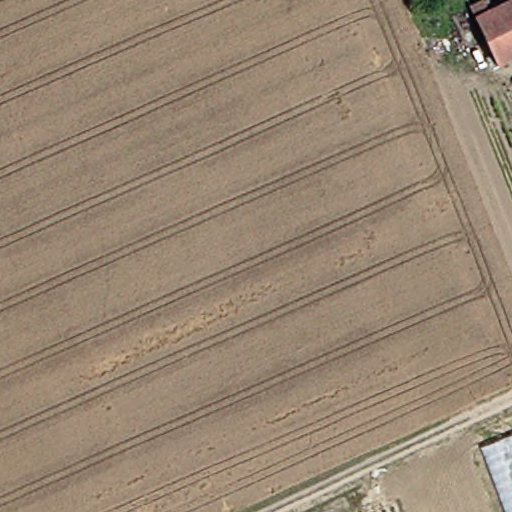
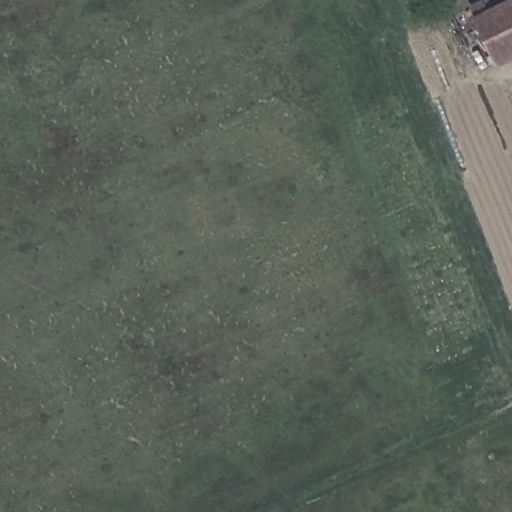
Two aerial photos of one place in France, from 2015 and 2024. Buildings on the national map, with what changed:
unchanged [(498,10),(512,3),(512,63),(508,65),(481,9),(493,2),(498,10)]
demolished [(512,512),(509,512),(486,447),(512,436),(512,512)]

